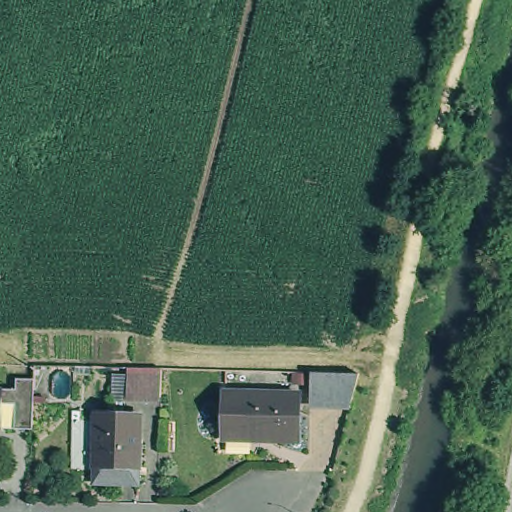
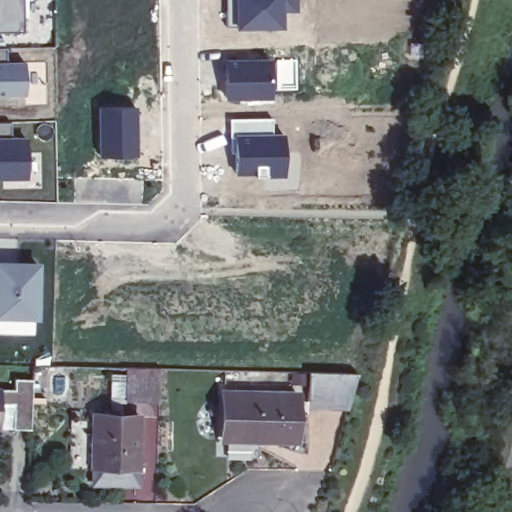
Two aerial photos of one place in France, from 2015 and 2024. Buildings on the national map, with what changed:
new [(25,29),(0,31),(0,0),(25,0),(25,29)]
new [(297,11),(282,12),(282,27),(230,27),(228,0),(296,0),(297,11)]
new [(28,57),(28,97),(0,97),(0,59),(28,57)]
new [(267,58),(270,99),(225,100),(222,59),(267,58)]
new [(138,106),(140,153),(100,155),(97,106),(138,106)]
new [(273,118),(273,133),(283,133),(285,176),(234,175),(230,118),(273,118)]
new [(12,123),(11,135),(30,135),(30,177),(0,177),(0,123),(12,123)]
new [(39,320),(0,319),(0,261),(40,262),(39,320)]
unchanged [(330,401),(331,395),(311,394),(312,366),(360,367),(350,402),(330,401)]
unchanged [(0,379),(13,379),(14,368),(30,369),(28,420),(12,419),(0,418),(0,378),(0,379)]
unchanged [(157,370),(156,398),(122,397),(123,369),(157,370)]
unchanged [(255,435),(220,435),(222,387),(296,389),(295,428),(295,436),(255,435)]
unchanged [(95,472),(96,454),(98,406),(142,408),(140,456),(140,473),(95,472)]

